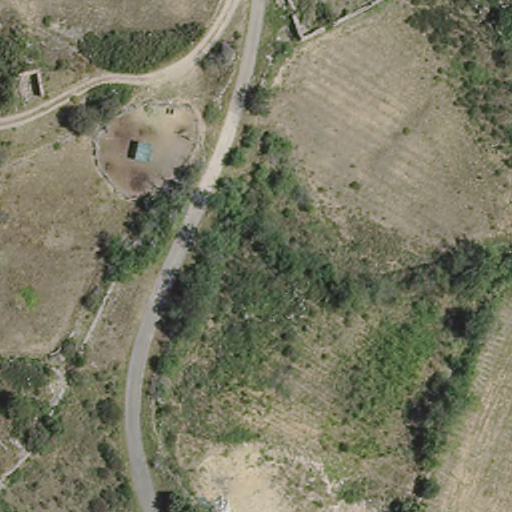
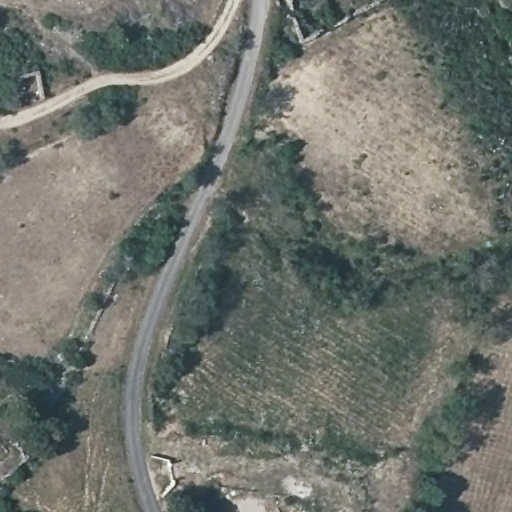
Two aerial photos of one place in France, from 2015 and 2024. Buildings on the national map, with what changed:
unchanged [(16,80),(38,76),(42,105),(20,108),(16,80)]

